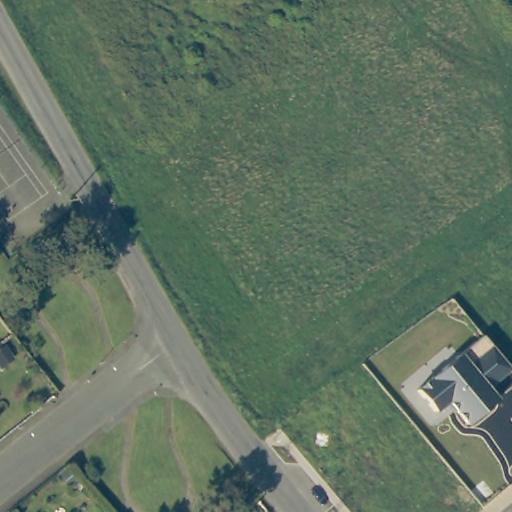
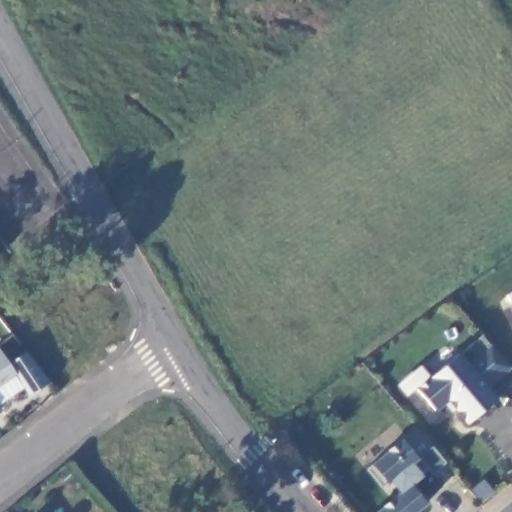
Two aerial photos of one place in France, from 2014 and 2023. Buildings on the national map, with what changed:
new [(512,291),(512,308),(506,296),(512,291)]
unchanged [(417,388),(460,352),(482,335),(510,368),(488,388),(497,398),(466,425),(449,403),(437,412),(417,388)]
new [(0,405),(0,351),(9,364),(17,358),(28,351),(51,382),(30,396),(24,389),(0,405)]
new [(417,457),(410,462),(424,477),(411,487),(426,506),(419,512),(375,512),(397,493),(388,482),(380,489),(365,470),(371,464),(400,440),(413,427),(445,463),(433,475),(417,457)]

